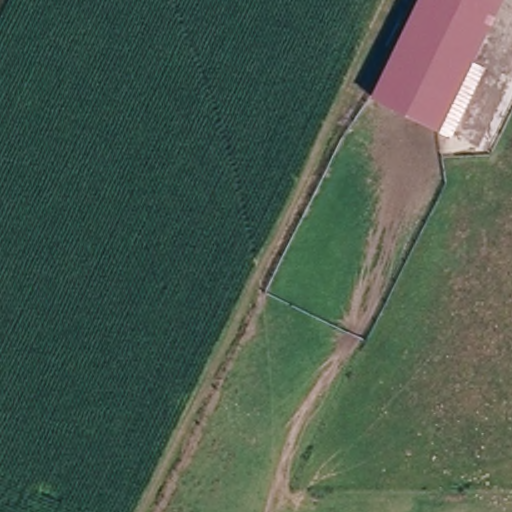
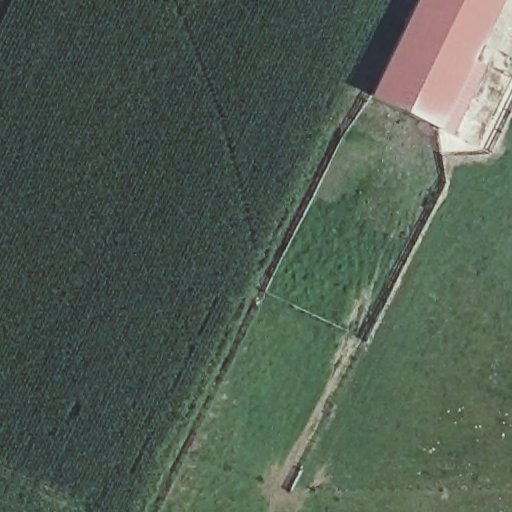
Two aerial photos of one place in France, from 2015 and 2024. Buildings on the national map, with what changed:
unchanged [(422,0),(503,0),(442,127),(376,96),(422,0)]

